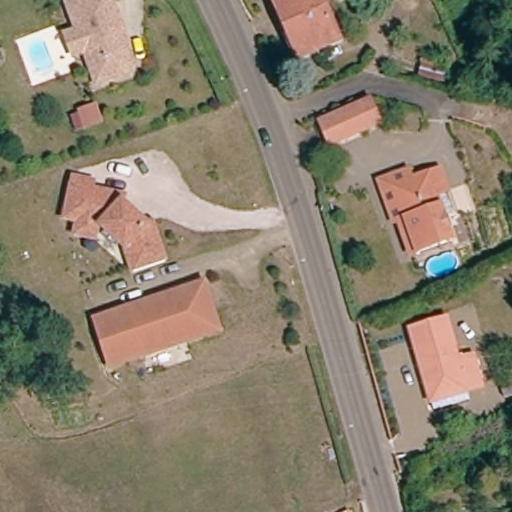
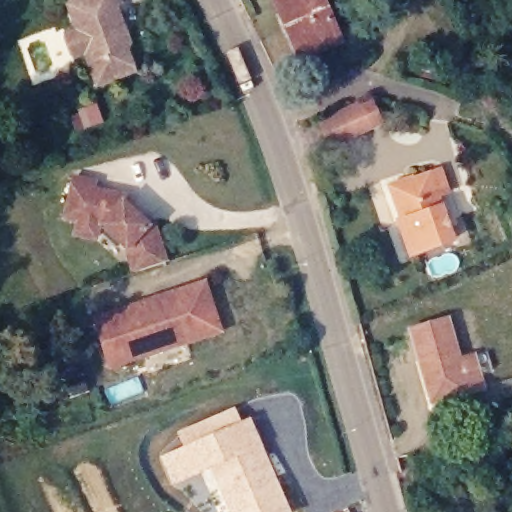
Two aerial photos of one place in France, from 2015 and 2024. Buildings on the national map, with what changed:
unchanged [(100,86),(89,53),(77,57),(70,36),(82,32),(72,5),(76,4),(75,0),(120,0),(122,5),(117,7),(128,37),(131,46),(127,47),(132,61),(136,74),(124,78),(100,86)]
unchanged [(342,39),(303,56),(278,0),(324,0),(342,39)]
unchanged [(326,117),(370,104),(380,100),(388,120),(378,125),(334,140),(326,117)]
unchanged [(106,118),(82,126),(77,112),(101,104),(106,118)]
unchanged [(455,236),(417,255),(403,224),(398,227),(379,185),(407,173),(412,185),(437,174),(450,197),(439,201),(455,236)]
unchanged [(80,233),(83,220),(67,217),(77,177),(96,182),(95,189),(112,193),(126,196),(125,201),(150,222),(156,220),(169,260),(137,270),(130,247),(103,225),(100,238),(80,233)]
unchanged [(220,331),(111,369),(94,322),(202,283),(220,331)]
unchanged [(430,391),(412,331),(447,320),(459,361),(476,357),(482,386),(467,390),(432,400),(430,391)]
unchanged [(87,388),(72,393),(67,379),(82,374),(87,388)]
new [(234,406),(241,420),(182,446),(176,431),(234,406)]
new [(241,420),(251,417),(291,512),(226,512),(214,487),(210,489),(202,473),(173,484),(161,456),(182,446),(241,420)]

